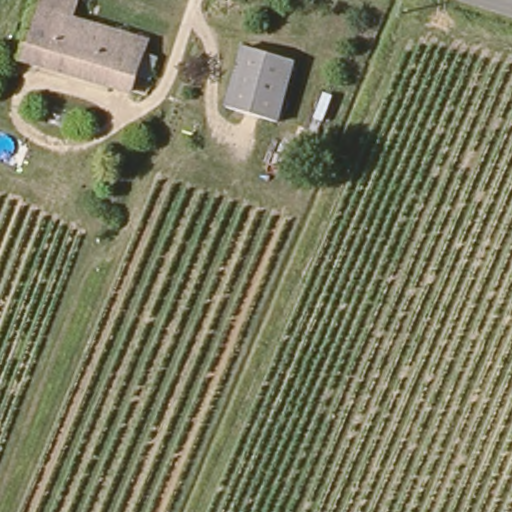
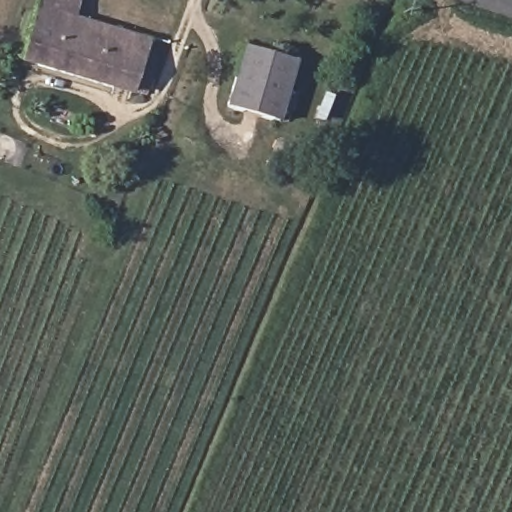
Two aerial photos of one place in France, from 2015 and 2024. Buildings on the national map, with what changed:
unchanged [(34,0),(74,0),(69,18),(32,7),(34,0)]
unchanged [(69,18),(160,45),(156,61),(146,58),(135,96),(15,60),(32,7),(69,18)]
unchanged [(238,46),(289,60),(272,121),(220,107),(238,46)]

